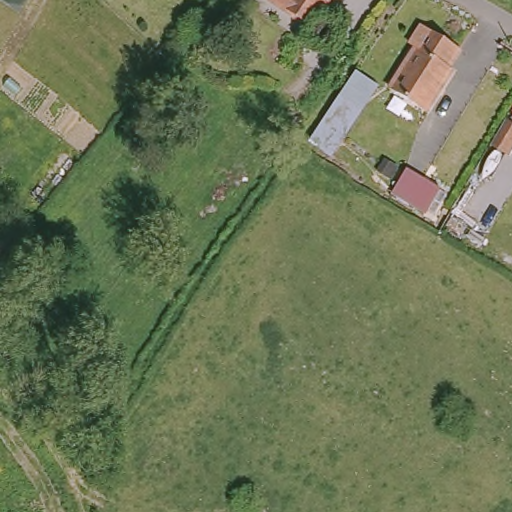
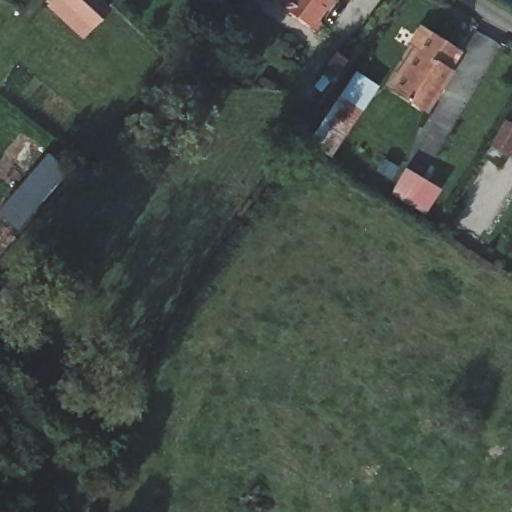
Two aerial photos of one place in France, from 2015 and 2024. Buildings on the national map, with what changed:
new [(50,0),(103,0),(112,7),(83,39),(46,5),(50,0)]
unchanged [(207,0),(208,0),(208,1),(207,0)]
unchanged [(282,6),(272,0),(298,0),(290,12),(282,6)]
unchanged [(329,24),(323,33),(290,12),(298,0),(334,0),(321,19),(329,24)]
unchanged [(352,35),(375,0),(386,0),(360,40),(352,35)]
unchanged [(411,47),(424,25),(463,50),(450,70),(453,72),(427,113),(392,91),(417,51),(411,47)]
unchanged [(332,160),(307,141),(353,70),(379,86),(332,160)]
new [(43,151),(66,167),(20,231),(0,217),(0,211),(43,151)]
unchanged [(512,166),(512,171),(501,190),(488,184),(464,227),(452,220),(492,152),(512,166)]
unchanged [(440,188),(425,217),(390,195),(405,168),(440,188)]

